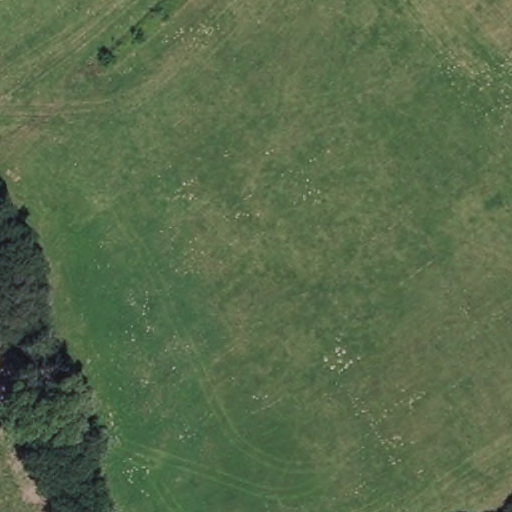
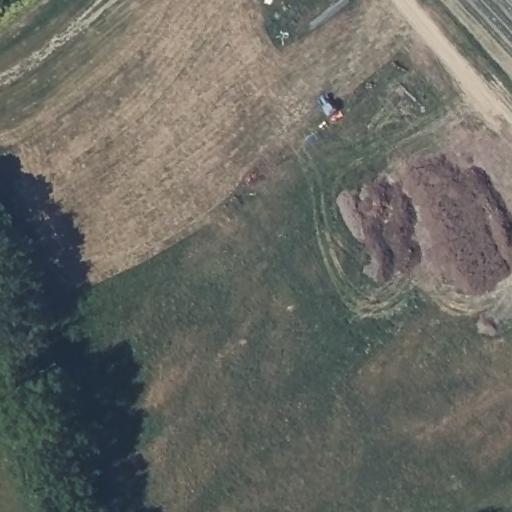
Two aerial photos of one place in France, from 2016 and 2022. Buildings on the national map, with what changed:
[]

